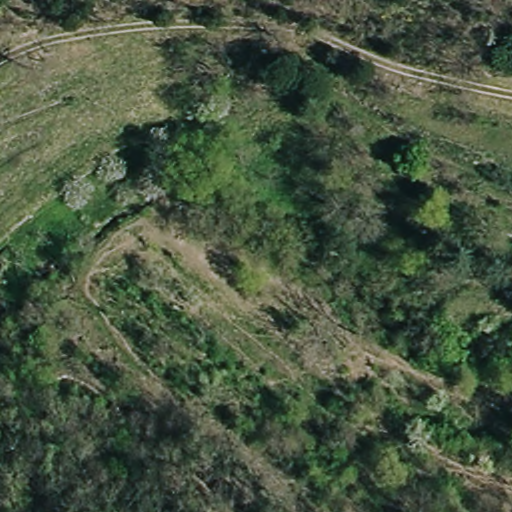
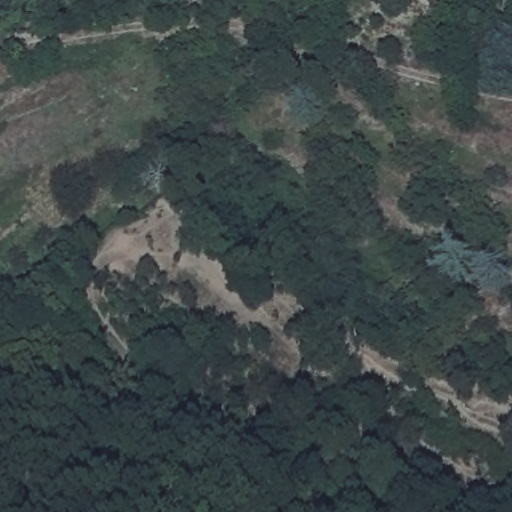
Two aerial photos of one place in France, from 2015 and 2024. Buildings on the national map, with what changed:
[]

